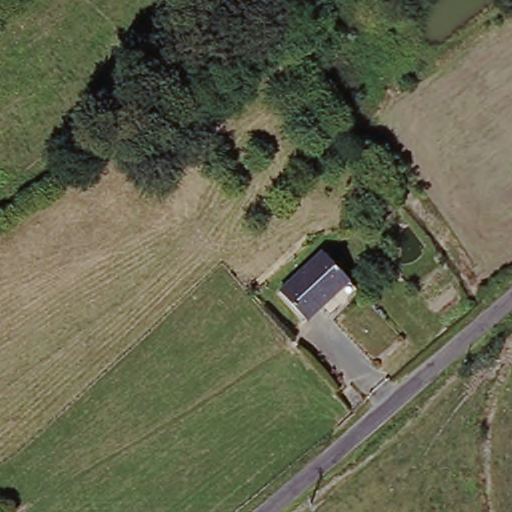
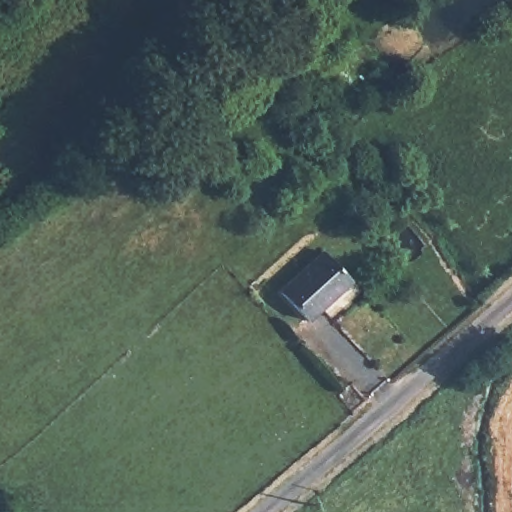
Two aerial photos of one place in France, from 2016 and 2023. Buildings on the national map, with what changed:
unchanged [(112,132),(124,141),(111,153),(102,143),(112,132)]
unchanged [(353,278),(362,288),(331,314),(322,304),(310,315),(285,286),(327,248),(336,258),(353,278)]

